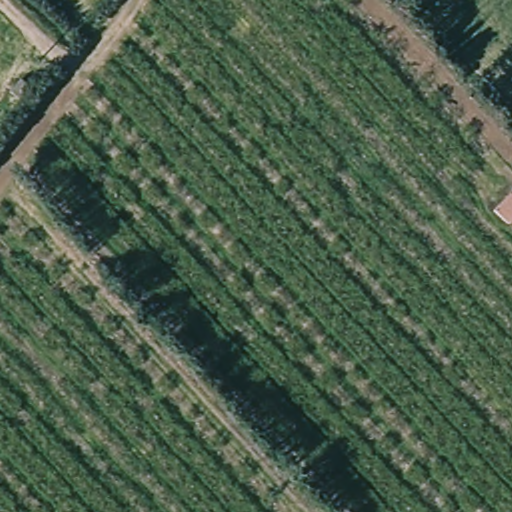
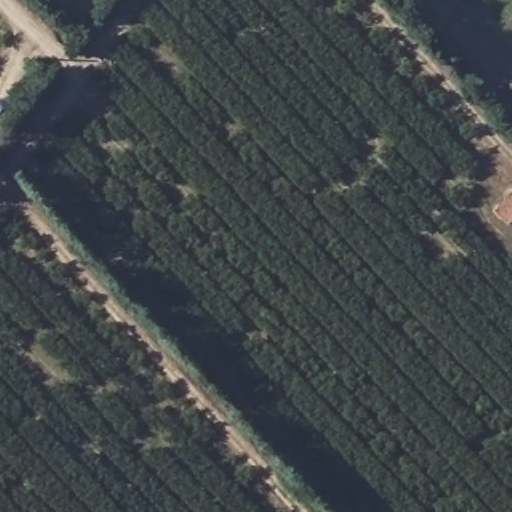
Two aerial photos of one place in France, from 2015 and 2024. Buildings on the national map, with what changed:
unchanged [(505,227),(489,213),(508,191),(512,195),(512,218),(505,227)]

